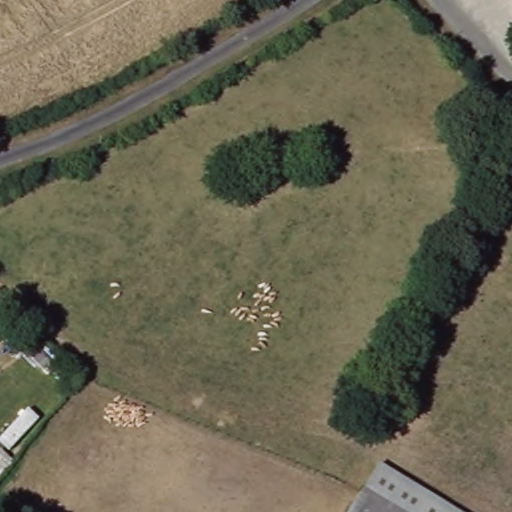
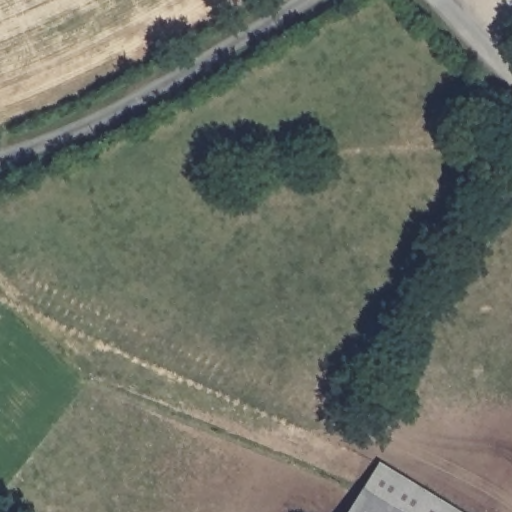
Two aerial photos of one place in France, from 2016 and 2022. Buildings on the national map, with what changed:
unchanged [(380,463),(463,512),(351,512),(380,463)]

